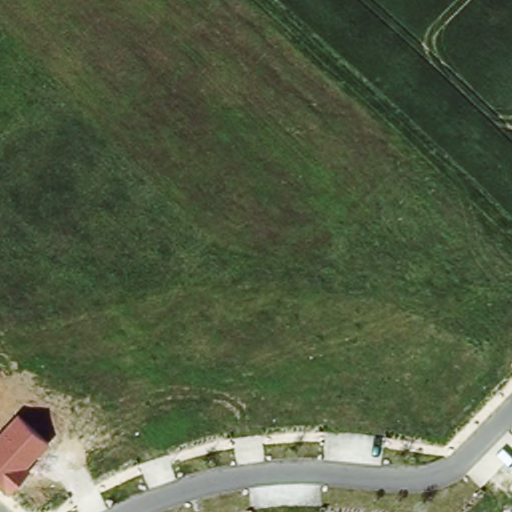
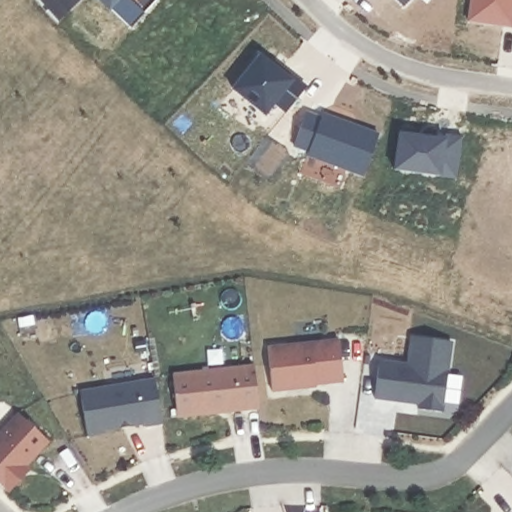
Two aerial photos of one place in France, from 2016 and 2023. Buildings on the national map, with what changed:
new [(144,14),(131,29),(100,0),(130,0),(144,14)]
new [(403,7),(395,0),(410,0),(403,7)]
new [(468,22),(471,0),(512,0),(512,28),(506,27),(468,22)]
new [(260,56),(279,71),(281,67),(306,87),(286,112),(275,104),(266,116),(233,90),(260,56)]
new [(306,112),(321,118),(323,114),(378,134),(363,176),(307,156),(309,152),(294,146),(306,112)]
new [(399,134),(444,139),(446,135),(462,137),(457,178),(394,170),(399,134)]
new [(453,343),(443,412),(416,408),(417,404),(374,400),(381,360),(409,363),(412,337),(453,343)]
new [(339,340),(343,382),(309,386),(310,388),(272,392),(268,347),(339,340)]
new [(254,366),(259,408),(178,417),(173,374),(254,366)]
new [(80,390),(155,378),(162,423),(146,427),(144,424),(104,432),(104,434),(88,437),(80,390)]
unchanged [(0,484),(0,430),(16,412),(48,442),(26,466),(30,470),(9,492),(0,484)]

